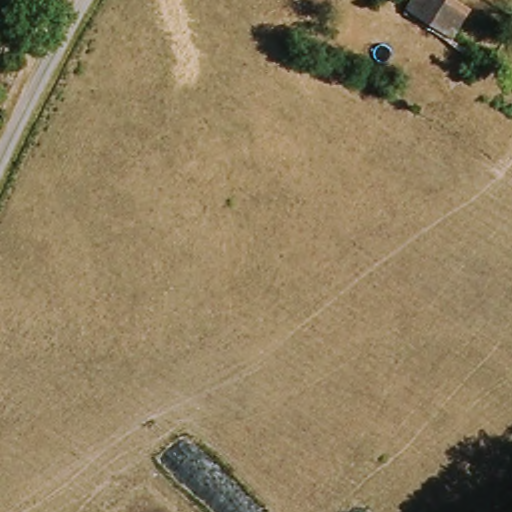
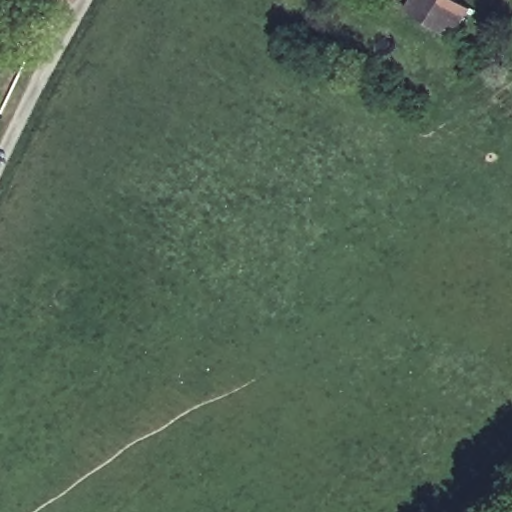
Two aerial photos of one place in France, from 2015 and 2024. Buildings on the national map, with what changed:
unchanged [(408,5),(410,0),(461,0),(468,4),(450,31),(408,5)]

